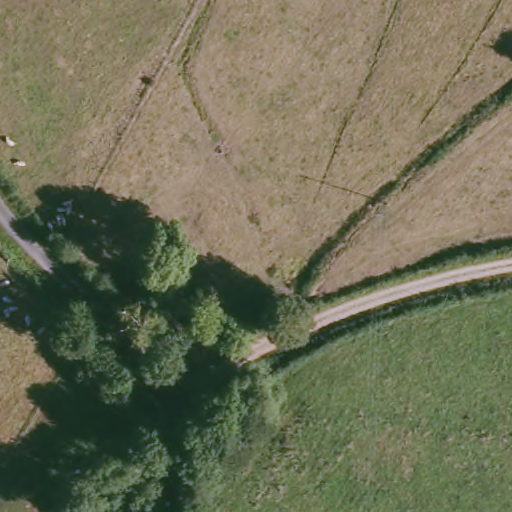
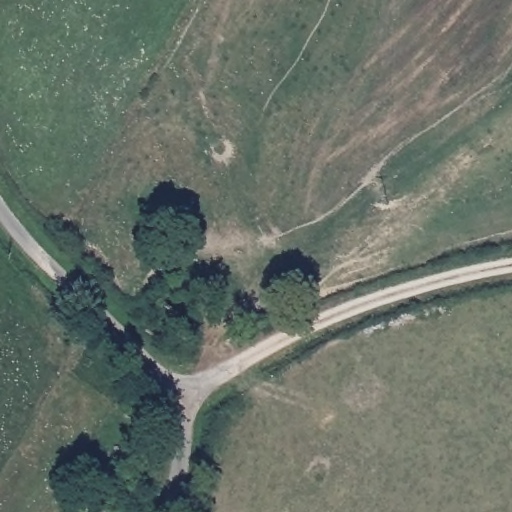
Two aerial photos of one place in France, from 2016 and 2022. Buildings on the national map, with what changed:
unchanged [(92,512),(90,512),(90,511),(92,512)]

